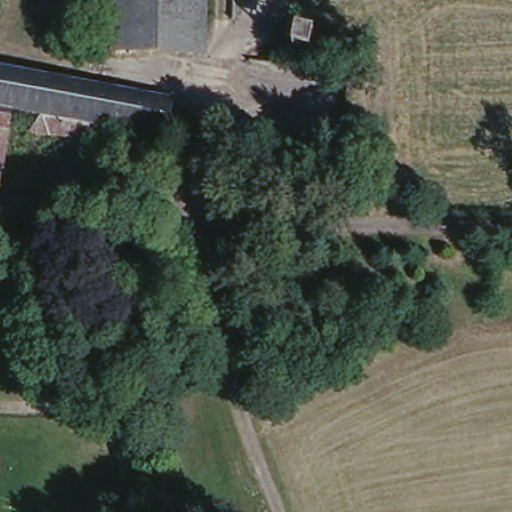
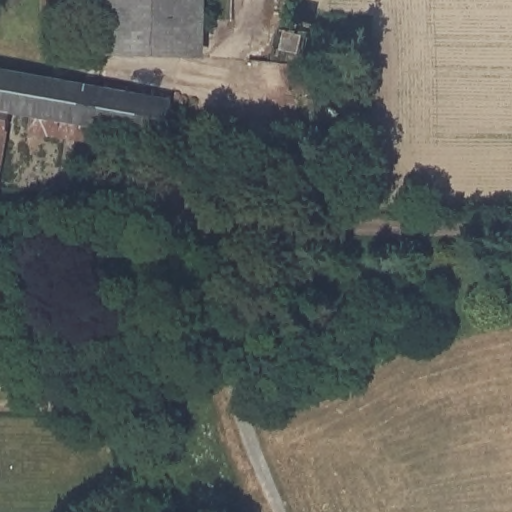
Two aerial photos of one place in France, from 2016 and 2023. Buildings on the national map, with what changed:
unchanged [(207,61),(111,60),(111,0),(208,0),(207,61)]
unchanged [(164,127),(112,119),(107,135),(27,121),(31,105),(8,102),(0,145),(0,61),(171,91),(164,127)]
unchanged [(152,245),(148,272),(122,270),(126,241),(152,245)]

